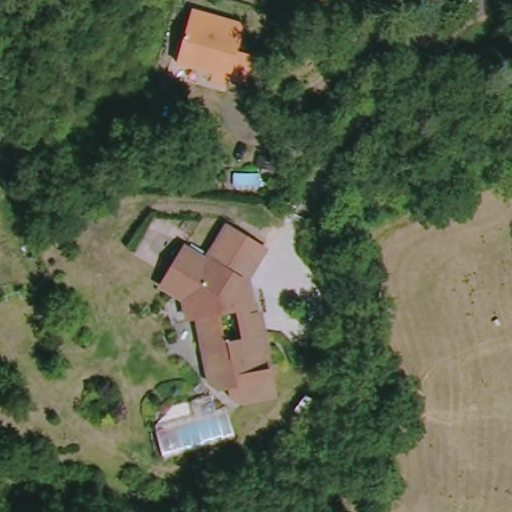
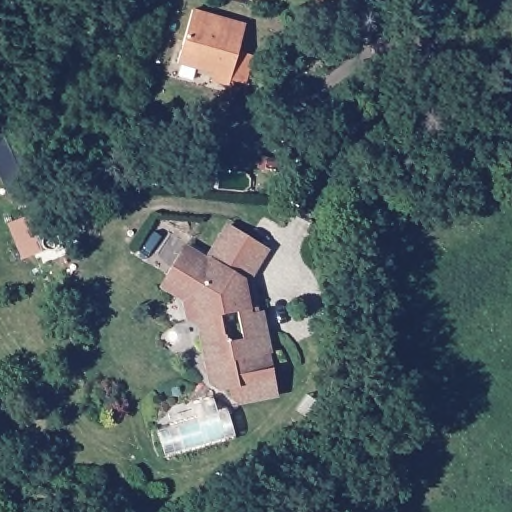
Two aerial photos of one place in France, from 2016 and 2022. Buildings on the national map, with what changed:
unchanged [(431,30),(420,17),(438,3),(447,15),(431,30)]
unchanged [(248,27),(230,87),(212,81),(214,75),(178,64),(195,11),(248,27)]
unchanged [(216,256),(244,222),(277,251),(258,276),(250,279),(252,314),(263,313),(266,354),(256,354),(257,364),(266,365),(268,397),(233,399),(227,396),(227,387),(220,386),(207,377),(201,309),(187,310),(185,287),(168,272),(176,263),(194,239),(216,256)]

